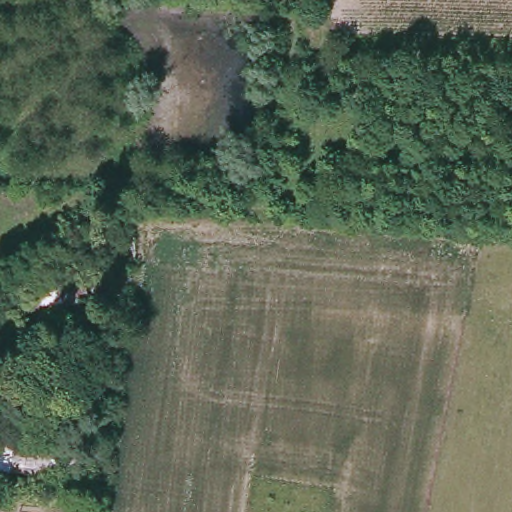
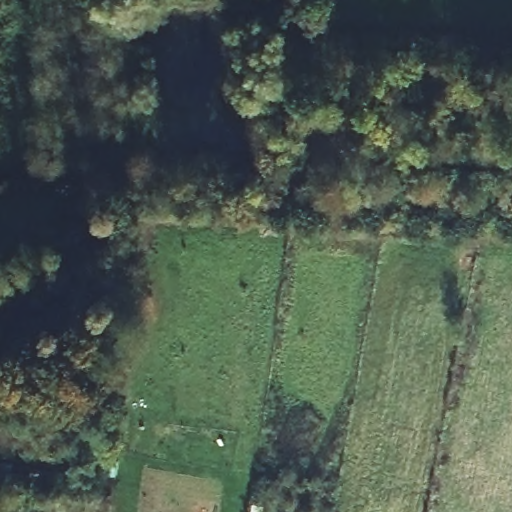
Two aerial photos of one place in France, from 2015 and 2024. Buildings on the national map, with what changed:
unchanged [(78,277),(85,297),(46,312),(39,291),(78,277)]
unchanged [(0,473),(0,441),(91,450),(87,484),(0,473)]

